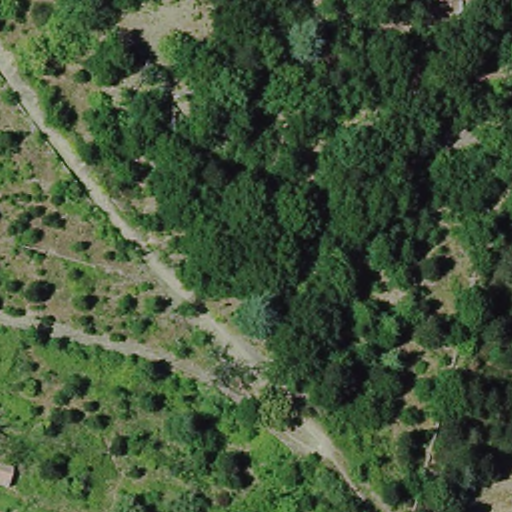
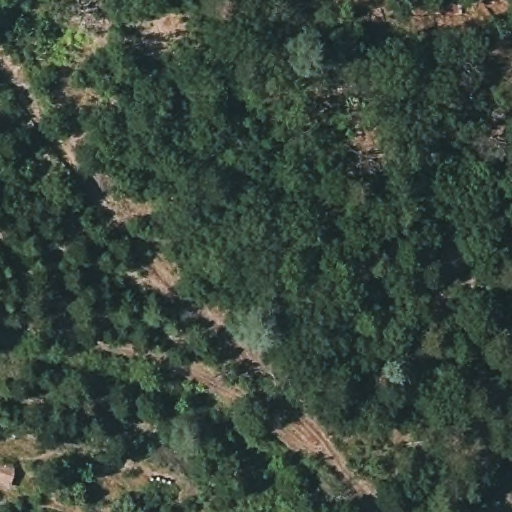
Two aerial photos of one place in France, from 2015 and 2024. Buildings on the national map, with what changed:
unchanged [(12,476),(8,488),(0,485),(0,472),(12,476)]

